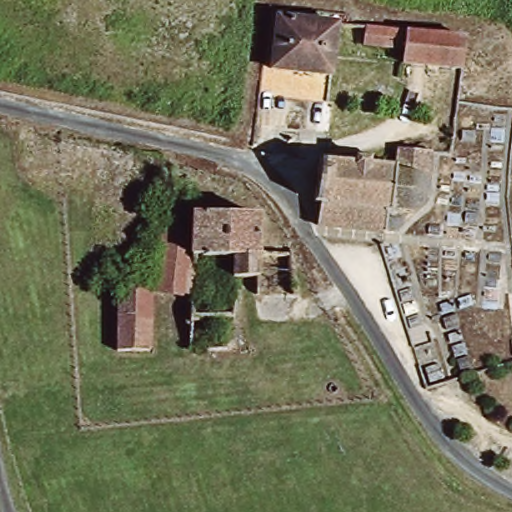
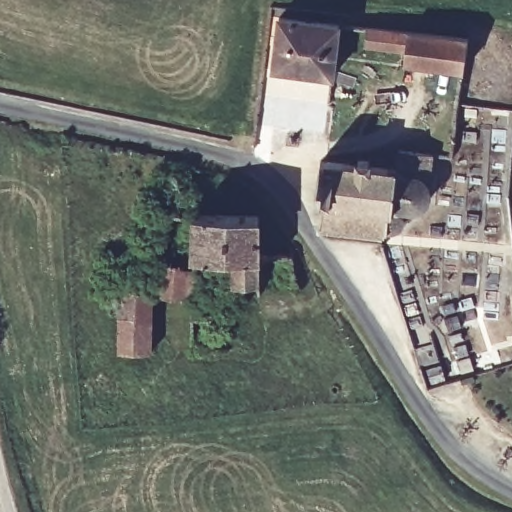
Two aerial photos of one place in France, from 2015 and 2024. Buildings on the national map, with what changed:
unchanged [(280,22),(341,30),(335,79),(274,71),(280,22)]
unchanged [(404,62),(405,51),(365,46),(367,26),(469,37),(466,70),(404,62)]
unchanged [(392,169),(393,162),(399,162),(403,146),(439,151),(433,193),(428,204),(418,209),(402,209),(403,214),(406,220),(404,226),(399,231),(389,231),(385,234),(321,226),(329,160),(361,164),(362,157),(373,159),(371,166),(392,169)]
unchanged [(156,215),(259,219),(258,263),(194,260),(192,294),(154,292),(156,215)]
unchanged [(118,353),(119,290),(154,292),(153,355),(118,353)]

